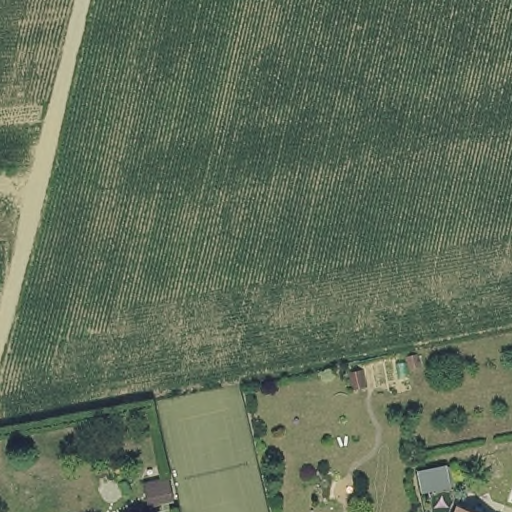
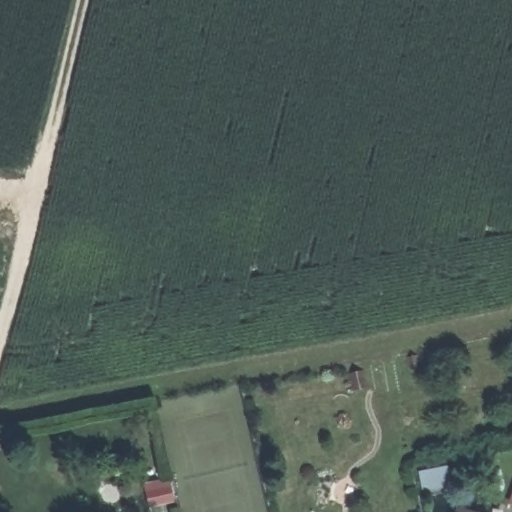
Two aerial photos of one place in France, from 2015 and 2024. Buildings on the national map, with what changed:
unchanged [(167,476),(173,502),(148,507),(142,482),(167,476)]

